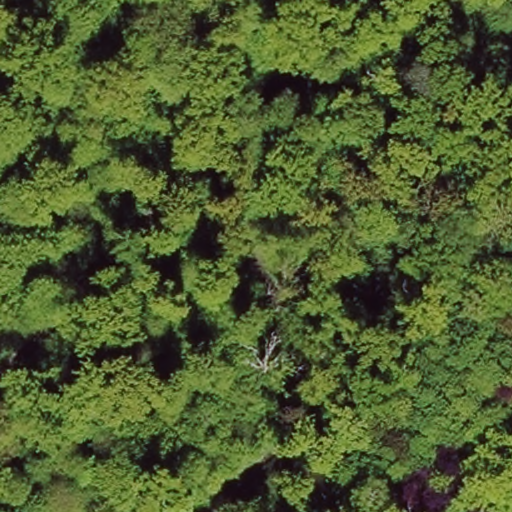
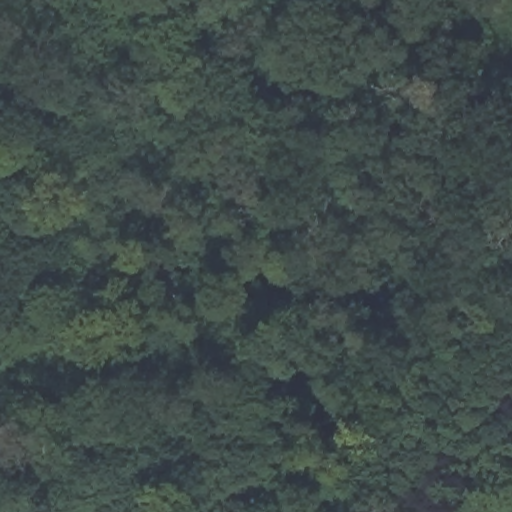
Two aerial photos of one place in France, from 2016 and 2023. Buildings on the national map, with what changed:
[]

